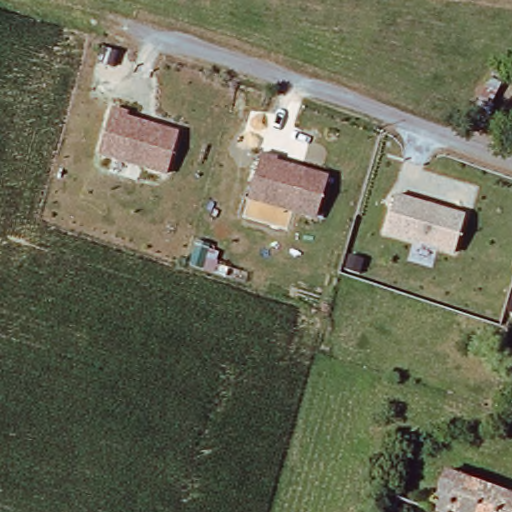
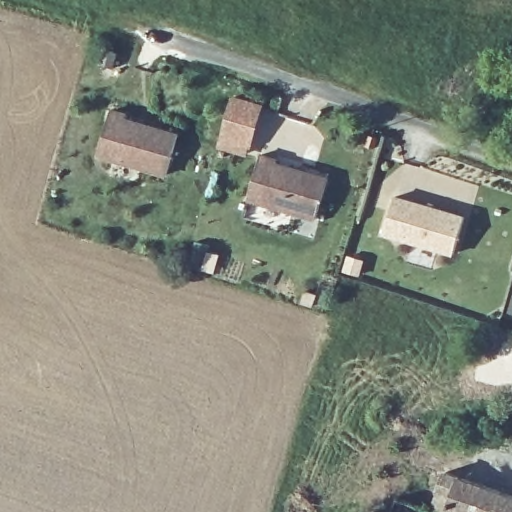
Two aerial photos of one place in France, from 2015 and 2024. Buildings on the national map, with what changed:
new [(233,96),(261,105),(251,145),(248,153),(220,145),(222,137),(233,96)]
unchanged [(168,174),(162,172),(100,154),(113,110),(129,115),(128,119),(175,132),(180,134),(168,174)]
unchanged [(281,161),(279,165),(331,180),(319,220),(251,200),(264,156),(281,161)]
unchanged [(382,234),(394,191),(466,213),(454,255),(382,234)]
unchanged [(458,480),(512,499),(512,512),(455,512),(448,510),(458,480)]

